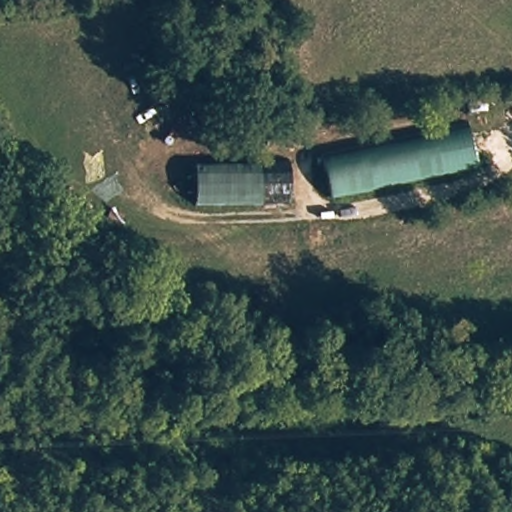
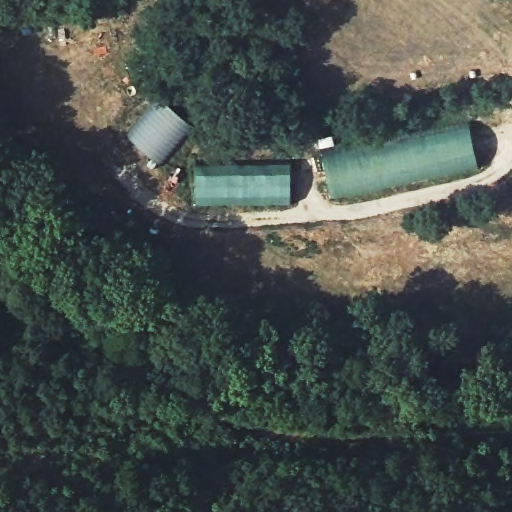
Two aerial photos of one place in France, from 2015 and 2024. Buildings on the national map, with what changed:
new [(158,98),(194,127),(162,165),(128,135),(158,98)]
unchanged [(481,170),(329,205),(324,159),(468,129),(481,170)]
unchanged [(293,204),(196,210),(196,165),(289,165),(293,204)]

